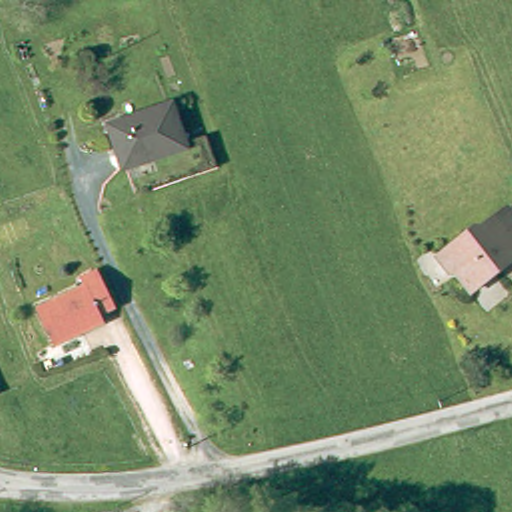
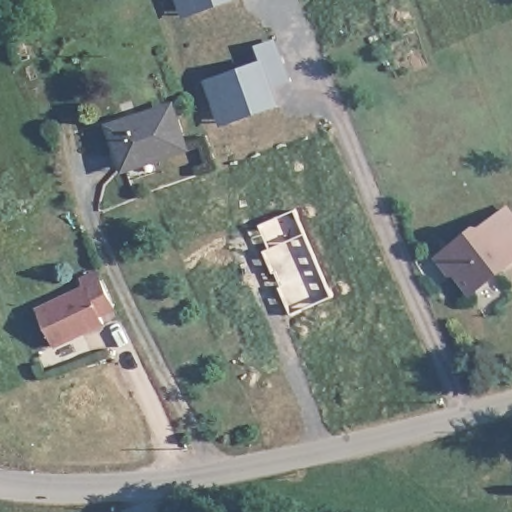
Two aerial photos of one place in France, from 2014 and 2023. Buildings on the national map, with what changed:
new [(176,0),(234,0),(182,18),(176,0)]
new [(260,60),(254,46),(275,39),(290,80),(273,86),(280,105),(220,126),(204,79),(260,60)]
unchanged [(188,152),(129,174),(115,135),(175,114),(188,152)]
new [(292,210),(330,296),(288,314),(277,287),(278,286),(272,272),(270,273),(261,251),(267,249),(256,225),(292,210)]
unchanged [(494,220),(503,213),(512,223),(512,261),(467,295),(439,260),(494,220)]
unchanged [(112,314),(93,322),(98,333),(50,354),(32,317),(82,294),(80,286),(96,279),(112,314)]

